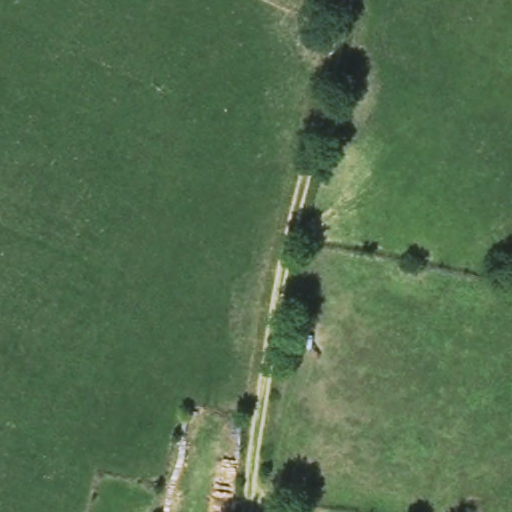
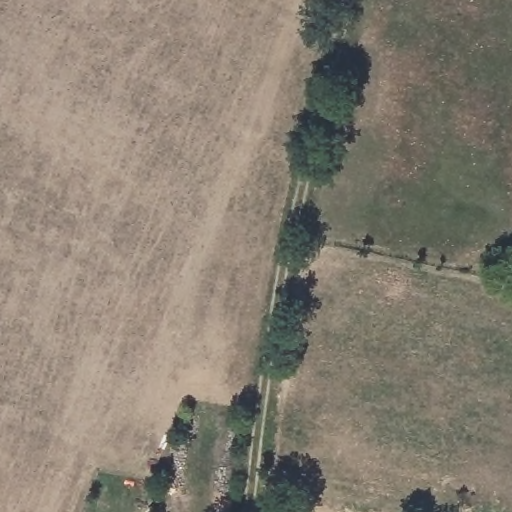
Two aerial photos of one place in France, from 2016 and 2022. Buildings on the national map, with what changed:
unchanged [(480,512),(459,512),(462,503),(481,507),(480,512)]

